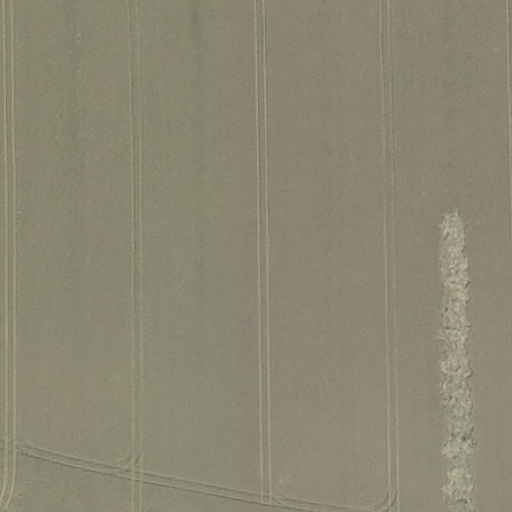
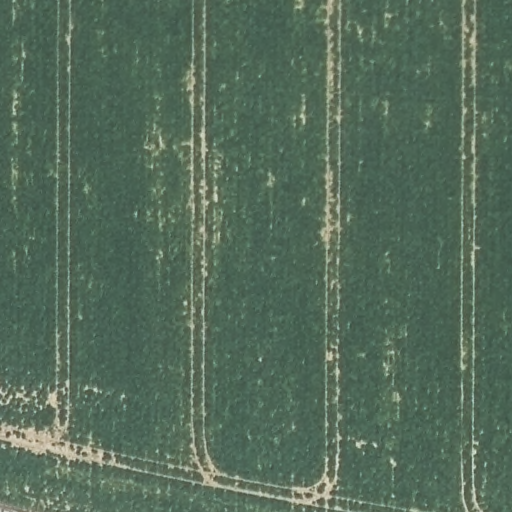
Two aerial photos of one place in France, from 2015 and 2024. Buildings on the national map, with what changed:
[]

